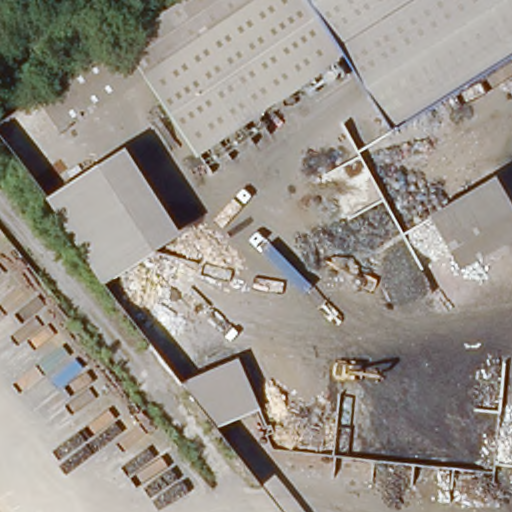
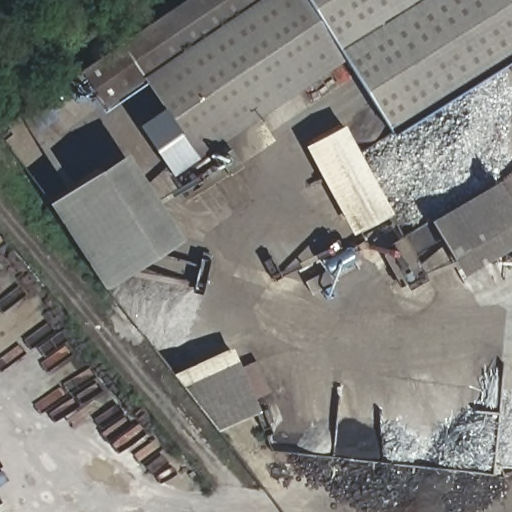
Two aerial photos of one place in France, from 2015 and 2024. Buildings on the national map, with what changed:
unchanged [(137,75),(53,128),(50,122),(24,139),(9,113),(174,0),(256,0),(137,75)]
unchanged [(343,59),(194,156),(137,75),(256,0),(512,0),(512,56),(391,134),(343,59)]
new [(392,212),(353,234),(305,145),(345,124),(392,212)]
unchanged [(48,192),(126,144),(182,233),(104,279),(48,192)]
unchanged [(429,217),(495,175),(512,202),(512,236),(461,264),(429,217)]
unchanged [(235,357),(257,409),(221,427),(184,380),(235,357)]

